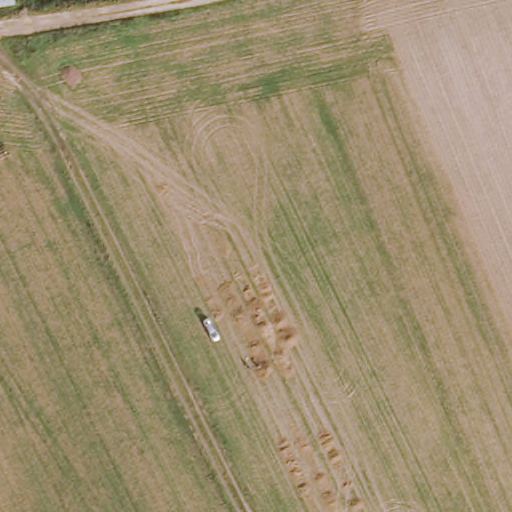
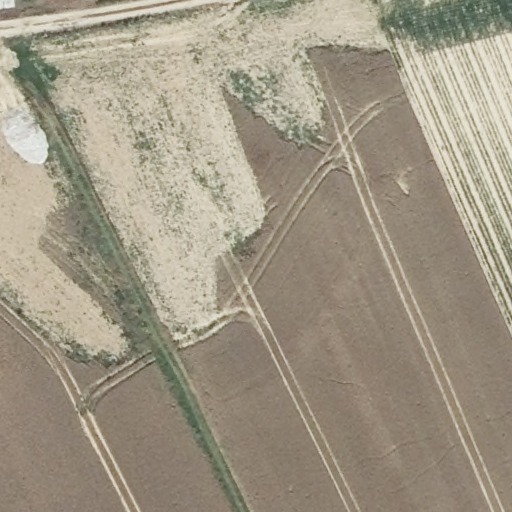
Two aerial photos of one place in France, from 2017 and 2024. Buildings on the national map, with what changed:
unchanged [(0,10),(0,0),(14,0),(16,9),(0,10)]

